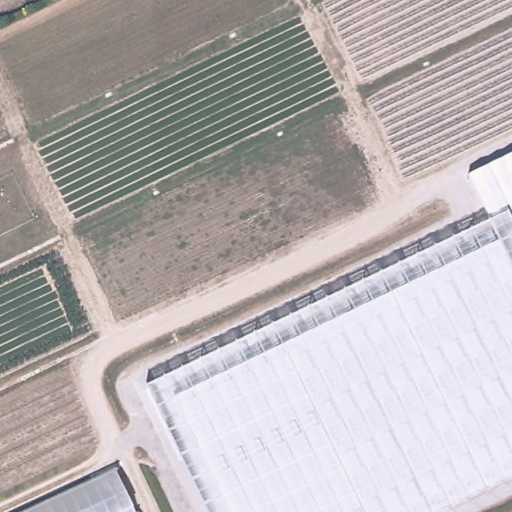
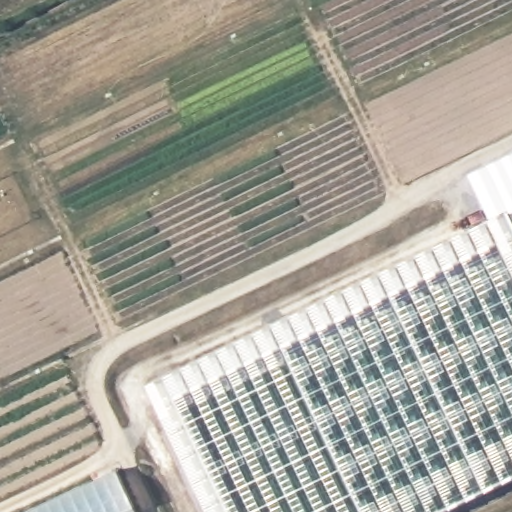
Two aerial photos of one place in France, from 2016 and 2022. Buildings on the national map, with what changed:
unchanged [(468,175),(512,153),(512,217),(491,227),(468,175)]
unchanged [(512,484),(454,512),(266,512),(197,370),(512,217),(512,484)]
unchanged [(146,394),(197,370),(266,512),(204,512),(146,394)]
unchanged [(117,468),(138,512),(25,512),(117,468)]

